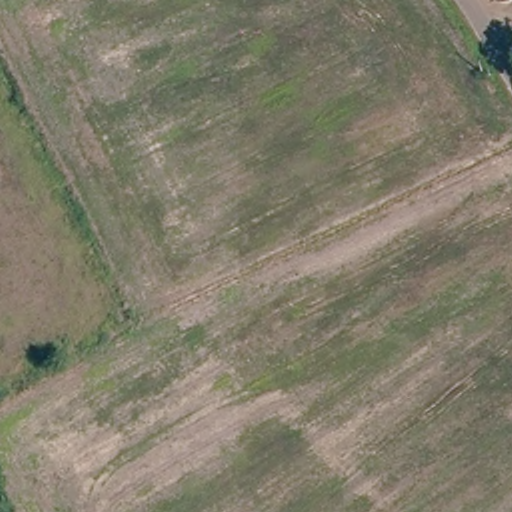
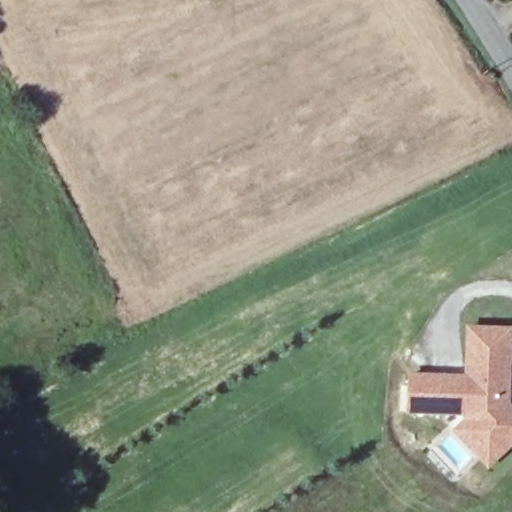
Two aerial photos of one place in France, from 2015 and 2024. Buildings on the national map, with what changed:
new [(461,420),(462,416),(405,415),(407,372),(462,373),(464,325),(511,327),(509,404),(512,407),(512,446),(486,469),(450,431),(461,420)]

